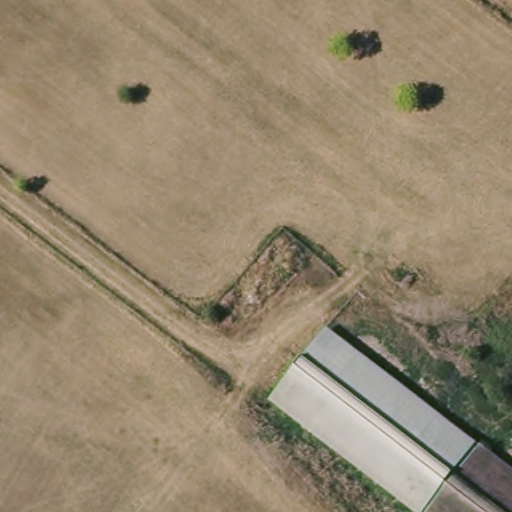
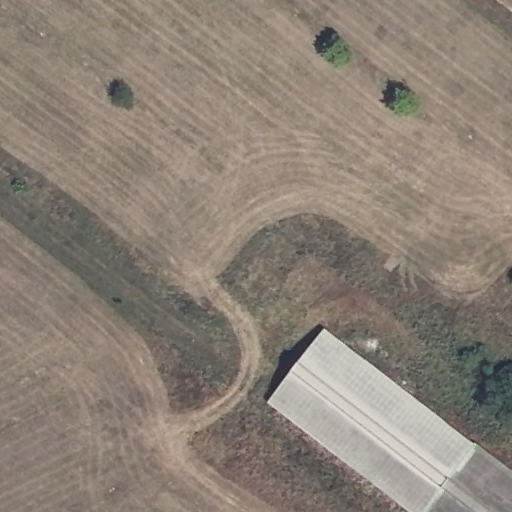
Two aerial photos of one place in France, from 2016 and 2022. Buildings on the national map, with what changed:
unchanged [(326,328),(512,473),(512,512),(412,512),(270,402),(326,328)]

